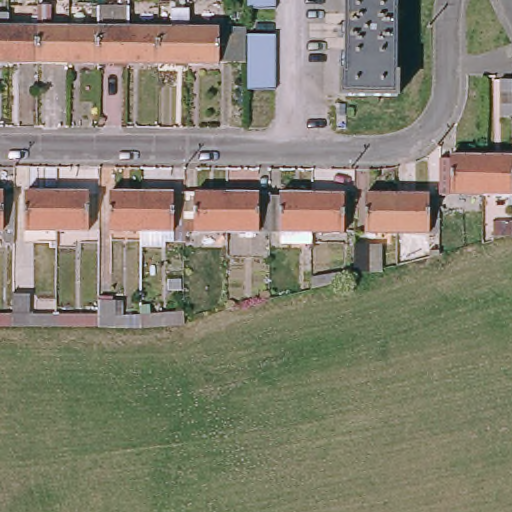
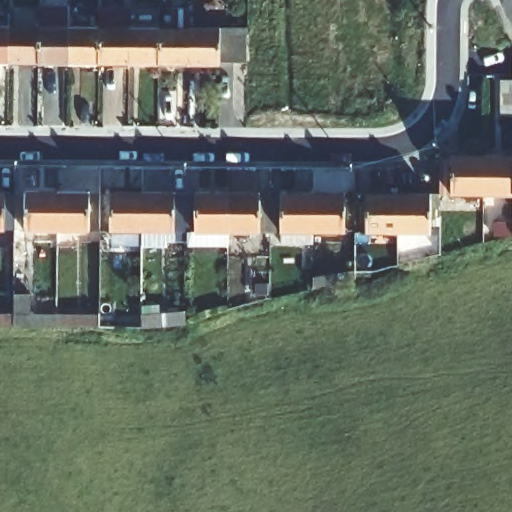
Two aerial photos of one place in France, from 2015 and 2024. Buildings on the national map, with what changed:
unchanged [(248,2),(248,0),(275,0),(275,2),(248,2)]
demolished [(398,66),(397,89),(340,88),(340,66),(344,66),(344,0),(395,0),(394,66),(398,66)]
unchanged [(32,25),(33,4),(45,5),(45,25),(62,25),(62,61),(32,61),(32,25)]
unchanged [(92,61),(92,26),(93,5),(123,6),(122,26),(122,62),(92,61)]
unchanged [(152,62),(153,26),(169,26),(169,6),(184,7),(184,28),(183,63),(152,62)]
unchanged [(0,61),(0,24),(3,25),(2,61),(0,61)]
unchanged [(3,25),(32,25),(32,61),(2,61),(3,25)]
unchanged [(62,25),(92,26),(92,61),(62,61),(62,25)]
unchanged [(122,62),(122,26),(153,26),(152,62),(122,62)]
unchanged [(213,59),(213,63),(183,63),(184,28),(240,28),(240,60),(213,59)]
unchanged [(271,35),(270,90),(244,90),(244,35),(271,35)]
unchanged [(495,78),(511,78),(511,91),(512,92),(512,118),(511,118),(511,100),(495,100),(495,78)]
unchanged [(438,157),(450,158),(450,154),(480,154),(480,189),(480,194),(439,193),(438,157)]
unchanged [(480,189),(480,154),(511,154),(511,194),(480,194),(480,189)]
unchanged [(512,154),(512,194),(511,194),(511,154),(512,154)]
unchanged [(164,233),(164,238),(141,238),(141,223),(110,223),(111,185),(141,185),(183,186),(196,186),(227,186),(227,223),(196,223),(183,223),(173,223),(172,233),(164,233)]
unchanged [(257,186),(257,189),(268,189),(268,224),(227,223),(227,186),(257,186)]
unchanged [(268,224),(268,189),(280,189),(280,186),(312,187),(312,224),(312,235),(268,235),(268,224)]
unchanged [(8,187),(8,234),(1,234),(2,231),(0,231),(0,187),(8,187)]
unchanged [(343,187),(343,224),(312,224),(312,187),(343,187)]
unchanged [(57,227),(25,227),(25,189),(56,190),(57,227)]
unchanged [(88,190),(88,227),(57,227),(56,190),(88,190)]
unchanged [(398,203),(398,229),(365,229),(366,192),(398,193),(398,203)]
unchanged [(439,193),(439,230),(398,229),(398,203),(398,193),(439,193)]
unchanged [(511,213),(512,213),(512,234),(511,234),(511,215),(511,213)]
unchanged [(356,241),(369,241),(370,271),(356,274),(356,241)]
unchanged [(14,314),(13,293),(30,293),(30,313),(57,311),(97,308),(97,294),(115,294),(116,322),(97,323),(57,325),(23,327),(14,327),(0,328),(0,314),(14,314)]

